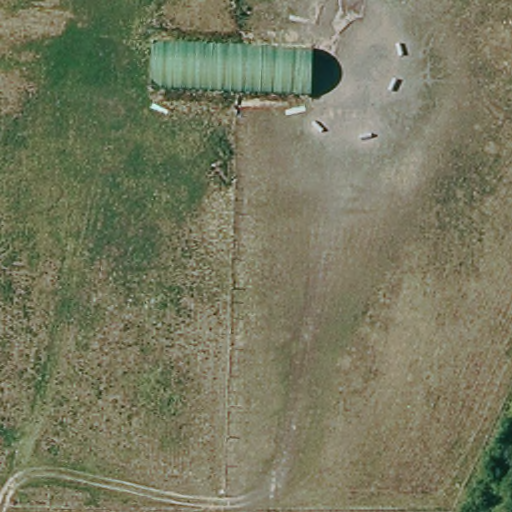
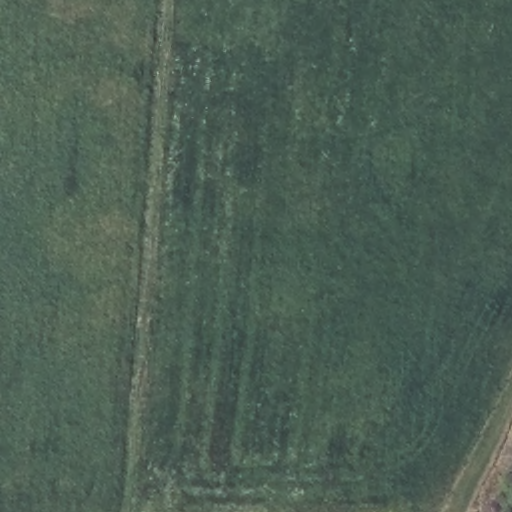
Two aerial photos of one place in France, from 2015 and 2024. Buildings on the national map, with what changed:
demolished [(311,47),(310,95),(151,88),(153,41),(311,47)]

